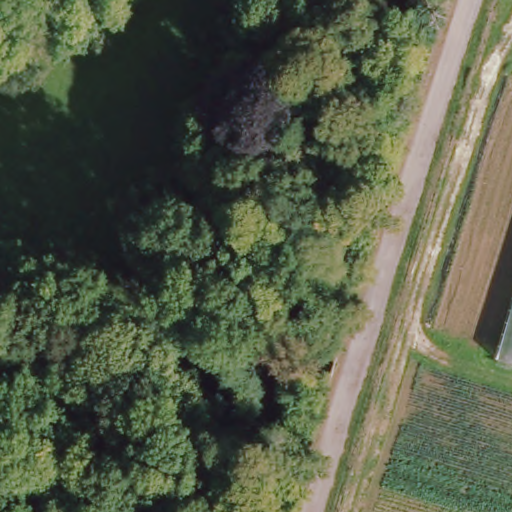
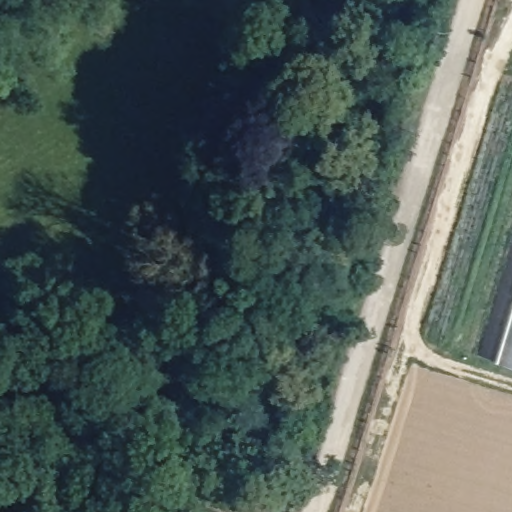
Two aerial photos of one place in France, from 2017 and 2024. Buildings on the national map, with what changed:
unchanged [(512,366),(498,361),(512,314),(512,366)]

